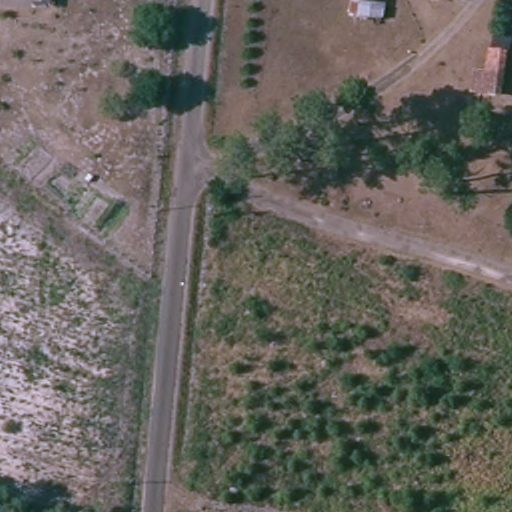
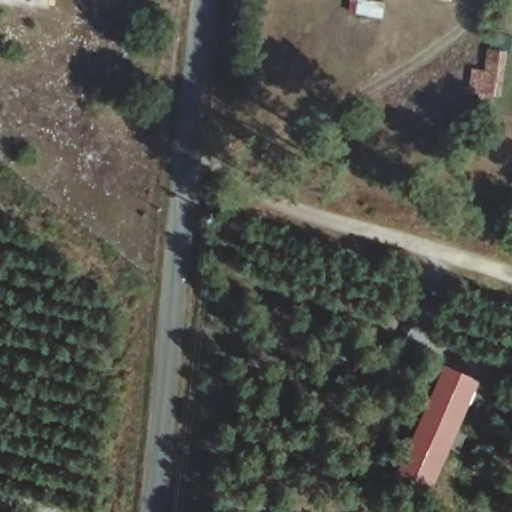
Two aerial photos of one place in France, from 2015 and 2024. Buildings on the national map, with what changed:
unchanged [(45,0),(45,5),(14,0),(45,0)]
unchanged [(451,0),(451,2),(440,0),(451,0)]
new [(481,380),(426,498),(395,483),(447,364),(481,380)]

